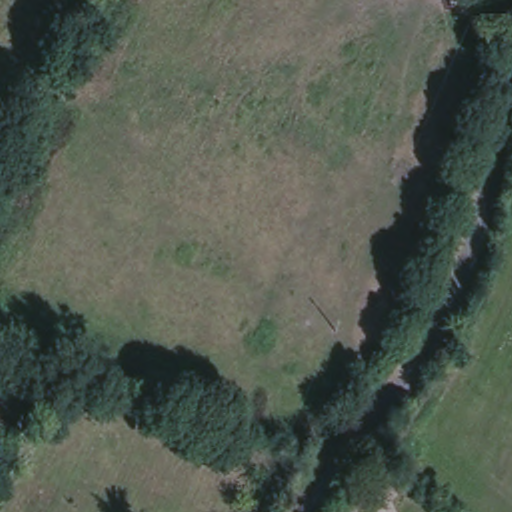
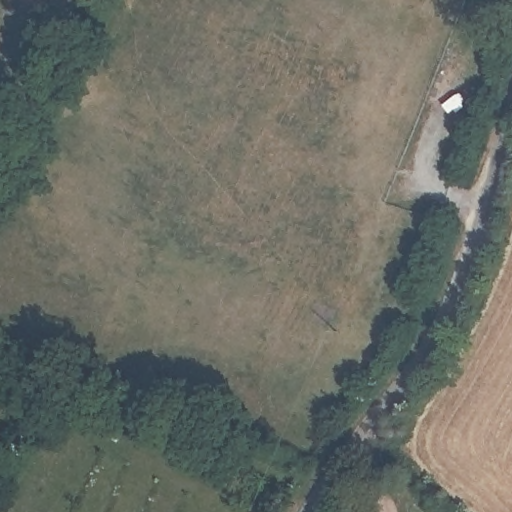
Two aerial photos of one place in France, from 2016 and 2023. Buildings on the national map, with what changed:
[]

